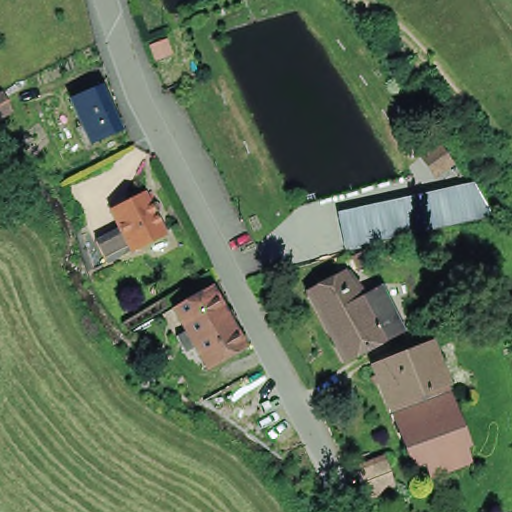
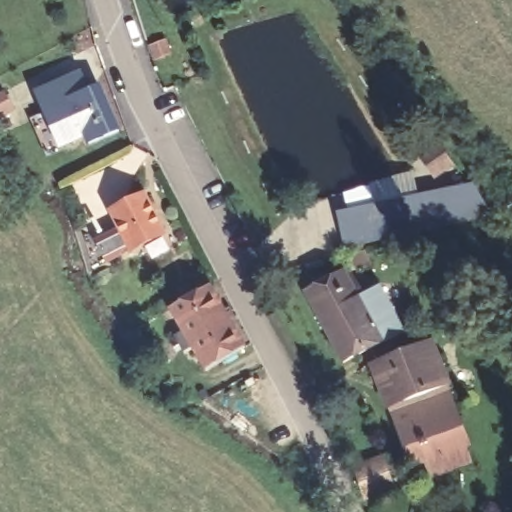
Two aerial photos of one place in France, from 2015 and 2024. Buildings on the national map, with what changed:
new [(71,96),(90,138),(55,153),(31,91),(80,73),(87,89),(71,96)]
unchanged [(118,125),(90,138),(82,121),(71,96),(100,83),(118,125)]
unchanged [(0,94),(7,106),(0,110),(0,94)]
unchanged [(116,207),(150,190),(170,229),(136,246),(112,258),(100,236),(125,224),(116,207)]
unchanged [(448,190),(450,199),(484,192),(495,211),(352,242),(345,213),(448,190)]
unchanged [(368,247),(374,261),(362,266),(357,252),(368,247)]
unchanged [(310,287),(348,267),(352,273),(357,270),(366,285),(362,288),(365,293),(385,282),(408,327),(348,358),(330,322),(310,287)]
unchanged [(180,337),(167,315),(177,310),(175,309),(215,286),(250,348),(211,371),(198,348),(190,353),(180,337)]
unchanged [(453,381),(450,383),(393,403),(377,360),(437,336),(453,381)]
unchanged [(435,473),(430,457),(417,462),(409,445),(393,403),(450,383),(473,440),(472,441),(477,457),(435,473)]
unchanged [(364,493),(357,474),(357,473),(385,463),(392,483),(364,493)]

